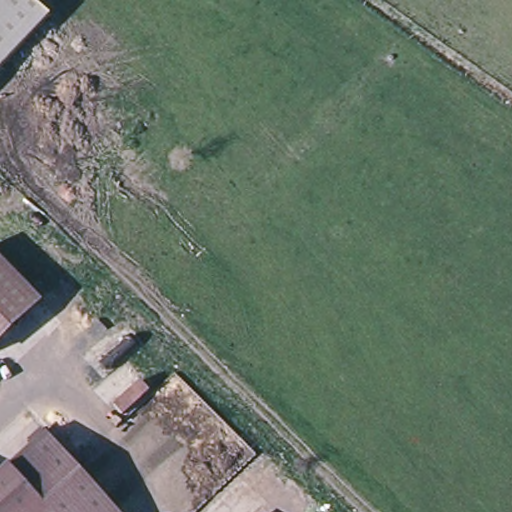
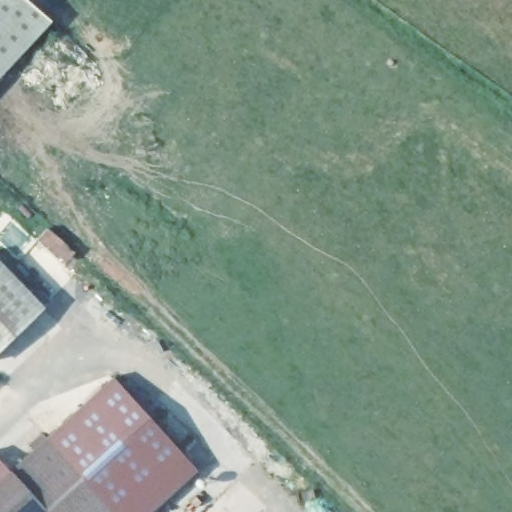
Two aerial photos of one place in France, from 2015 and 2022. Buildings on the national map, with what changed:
unchanged [(0,0),(30,0),(54,20),(0,77),(0,0)]
unchanged [(0,348),(0,259),(43,305),(0,348)]
new [(50,433),(105,377),(191,467),(149,512),(123,512),(50,433)]
unchanged [(123,512),(0,512),(0,479),(50,433),(123,512)]

